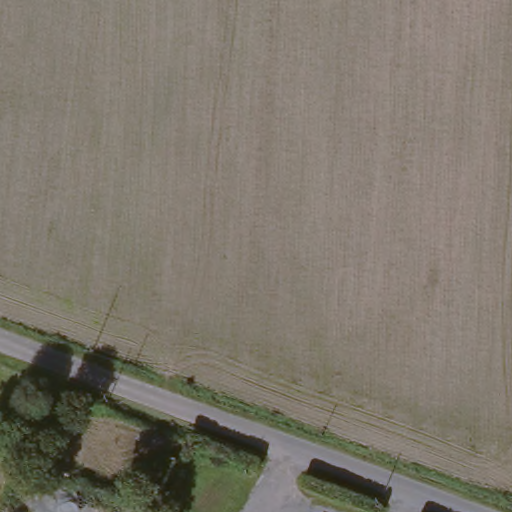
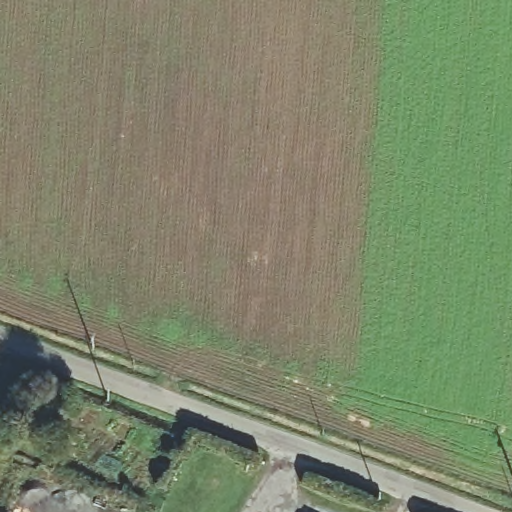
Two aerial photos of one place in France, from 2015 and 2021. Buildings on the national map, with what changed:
unchanged [(180,465),(161,491),(141,474),(158,450),(180,465)]

